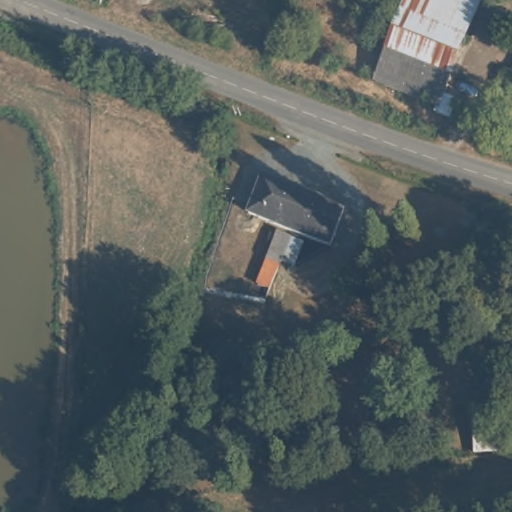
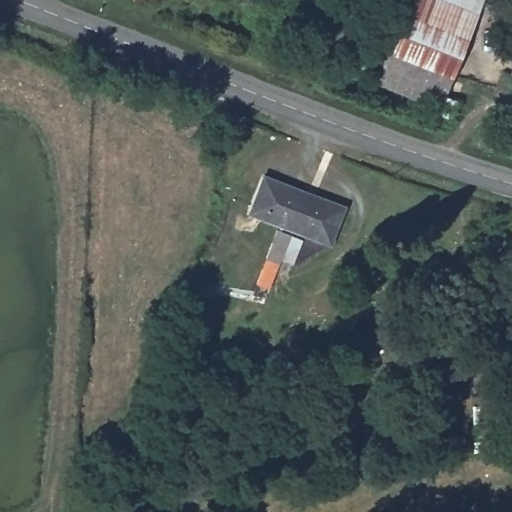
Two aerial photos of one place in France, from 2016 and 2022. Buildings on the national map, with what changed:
unchanged [(405,0),(474,0),(452,72),(387,48),(405,0)]
unchanged [(445,94),(458,100),(451,118),(438,112),(439,106),(376,81),(387,48),(452,72),(445,94)]
unchanged [(512,87),(505,101),(496,96),(507,76),(512,78),(512,87)]
unchanged [(332,237),(255,208),(267,171),(343,200),(332,237)]
unchanged [(287,231),(278,254),(267,249),(276,227),(287,231)]

